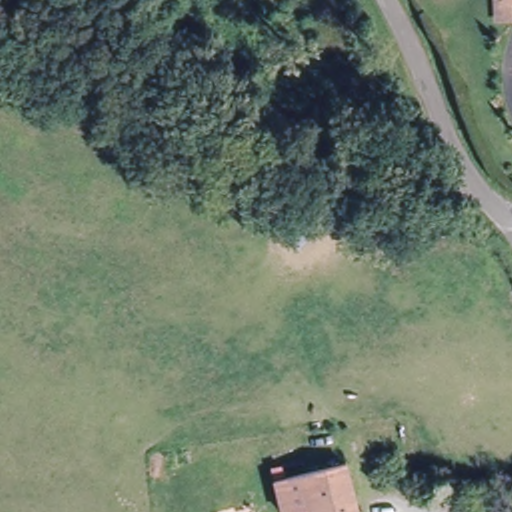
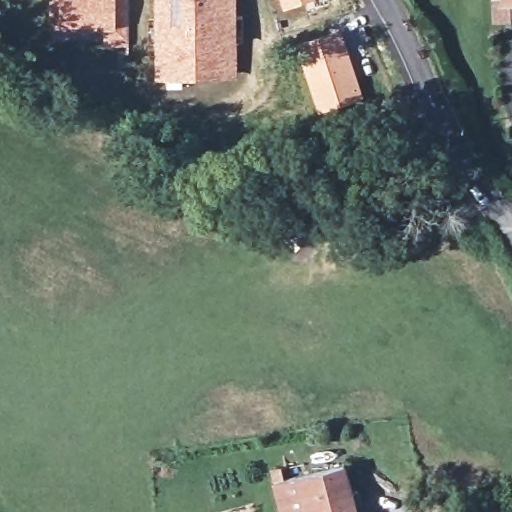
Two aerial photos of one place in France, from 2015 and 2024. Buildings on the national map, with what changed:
new [(51,43),(49,28),(50,0),(129,0),(129,50),(100,50),(84,48),(83,44),(51,43)]
new [(238,79),(183,79),(183,87),(169,87),(169,81),(154,81),(154,0),(239,0),(239,35),(238,79)]
new [(280,0),(309,0),(283,9),(280,0)]
unchanged [(503,20),(501,0),(512,0),(512,20),(503,20)]
new [(343,26),(364,94),(316,107),(294,41),(343,26)]
unchanged [(273,485),(269,475),(279,472),(282,483),(309,475),(320,471),(340,467),(356,512),(282,512),(273,485)]

